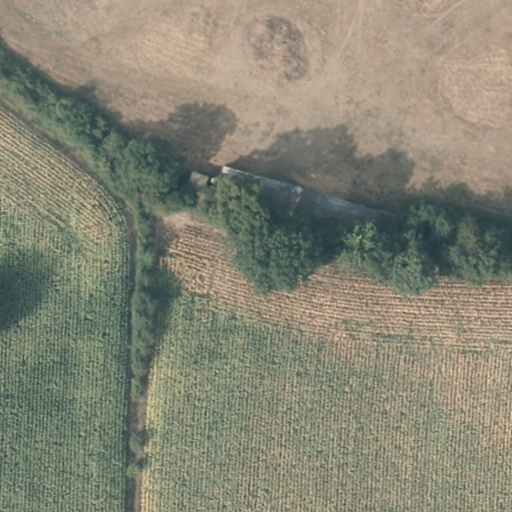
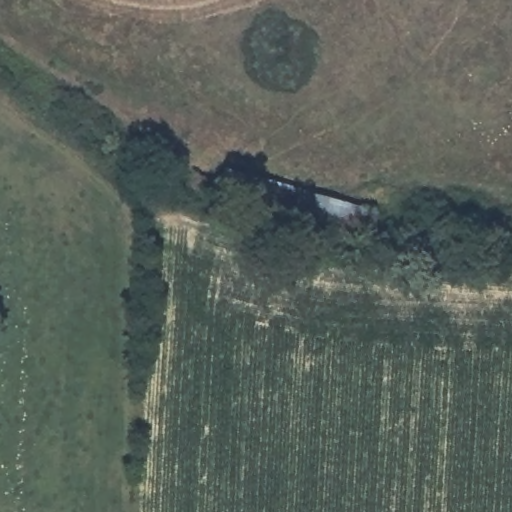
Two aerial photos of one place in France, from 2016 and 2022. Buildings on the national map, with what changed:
unchanged [(365,238),(340,230),(337,239),(213,202),(223,169),(372,210),(365,238)]

